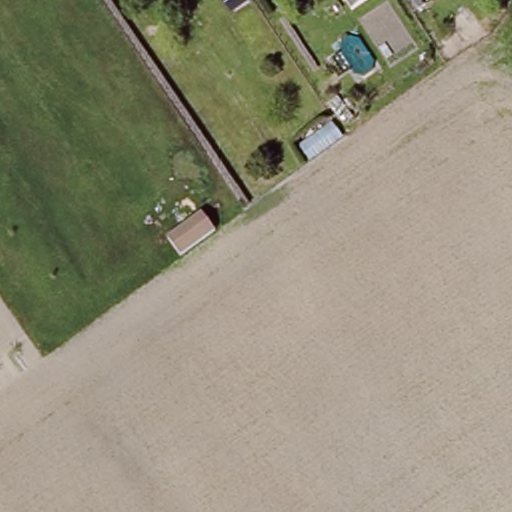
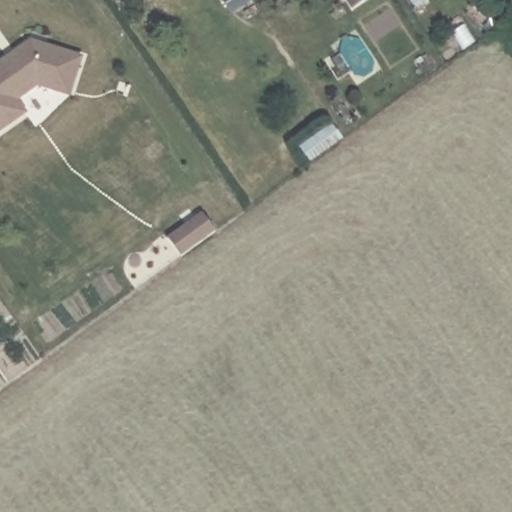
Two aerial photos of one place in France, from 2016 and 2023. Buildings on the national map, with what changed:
unchanged [(350,2),(349,0),(353,0),(350,2)]
new [(20,100),(29,113),(0,133),(0,62),(30,40),(85,56),(72,97),(38,88),(20,100)]
unchanged [(344,136),(310,160),(300,147),(335,121),(344,136)]
new [(203,214),(216,231),(182,257),(170,239),(203,214)]

